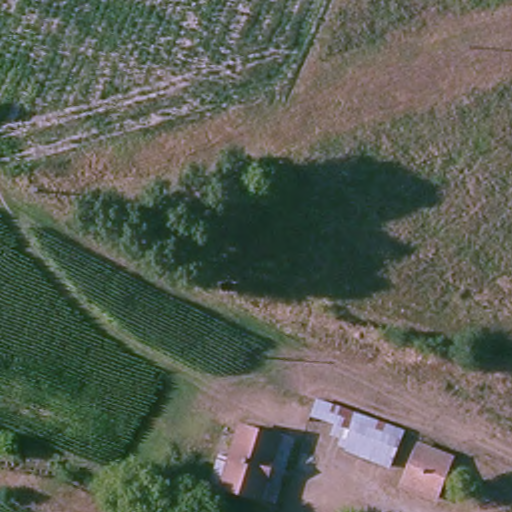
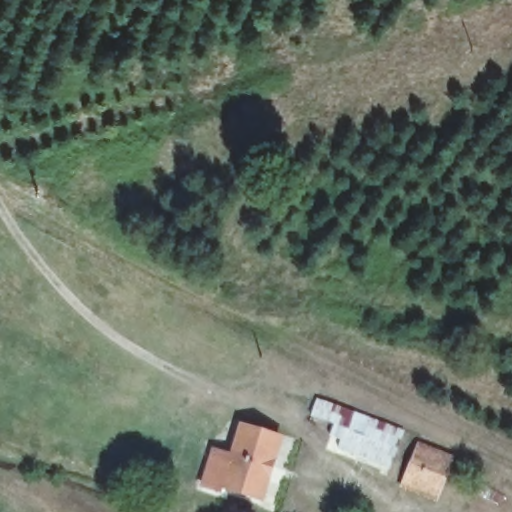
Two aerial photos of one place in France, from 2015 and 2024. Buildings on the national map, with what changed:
unchanged [(394,441),(403,445),(392,468),(324,443),(330,423),(310,417),(316,395),(398,428),(394,441)]
unchanged [(256,498),(218,485),(238,424),(277,437),(256,498)]
unchanged [(397,487),(419,438),(458,452),(438,504),(397,487)]

